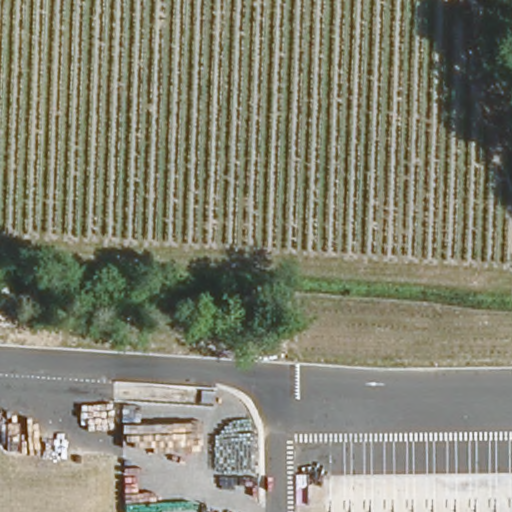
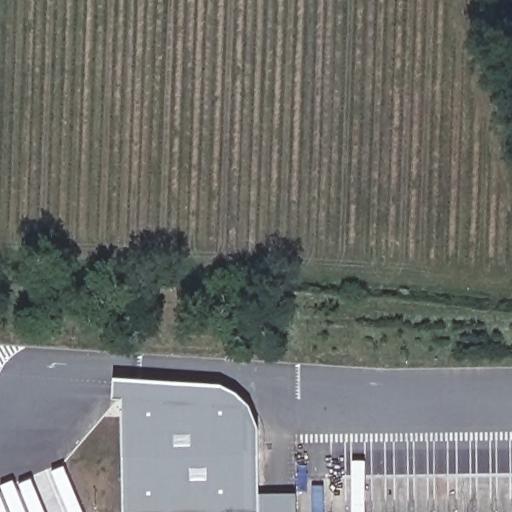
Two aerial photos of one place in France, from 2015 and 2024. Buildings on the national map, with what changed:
new [(122,402),(112,402),(113,381),(219,387),(236,396),(250,408),(259,431),(259,496),(295,496),(296,512),(123,512),(122,402)]

